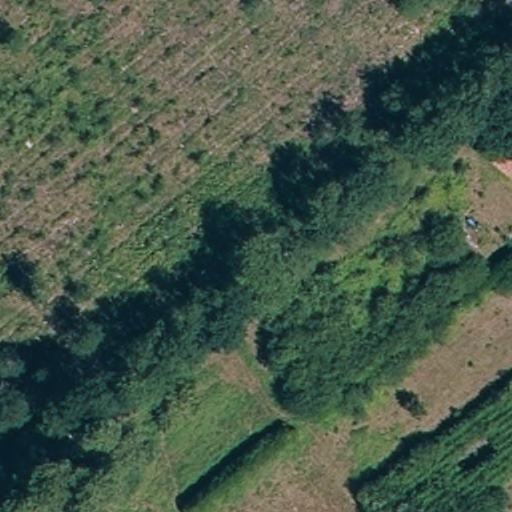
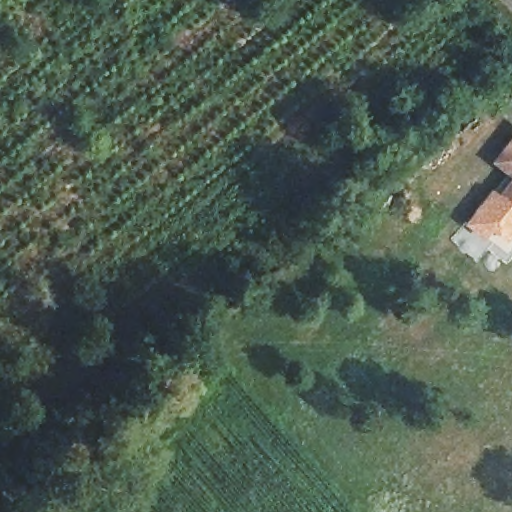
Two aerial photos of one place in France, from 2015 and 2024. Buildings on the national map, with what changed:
demolished [(495,154),(512,129),(512,166),(495,154)]
new [(492,162),(512,136),(512,176),(492,162)]
new [(492,231),(485,240),(466,224),(492,189),(499,193),(512,178),(512,237),(508,242),(492,231)]

